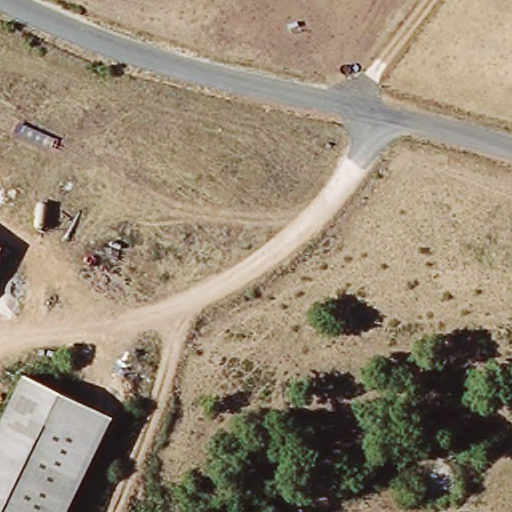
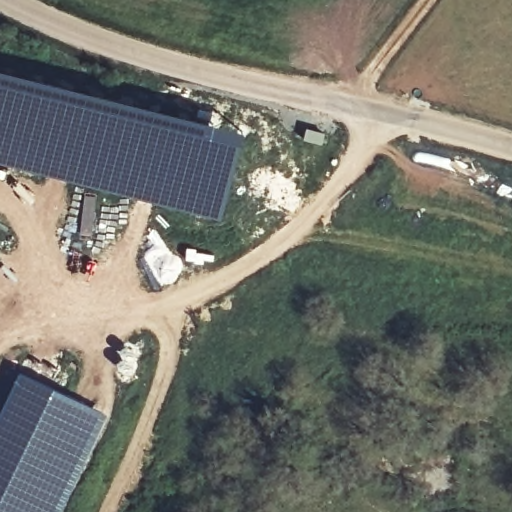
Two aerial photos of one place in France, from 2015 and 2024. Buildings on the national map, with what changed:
new [(168,109),(243,131),(222,219),(0,163),(0,66),(168,109)]
unchanged [(1,247),(0,248),(0,247),(1,247)]
unchanged [(104,416),(57,512),(0,512),(0,410),(19,370),(104,416)]

